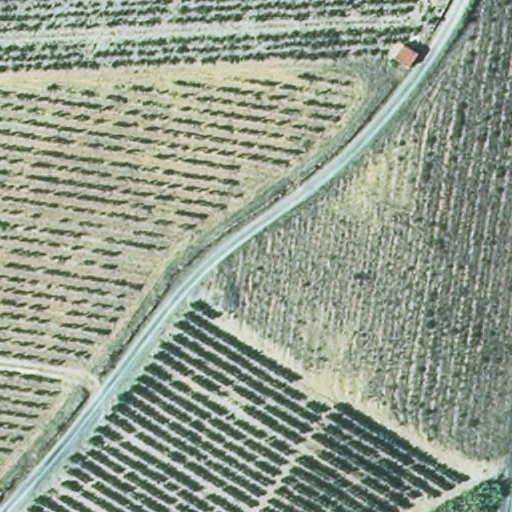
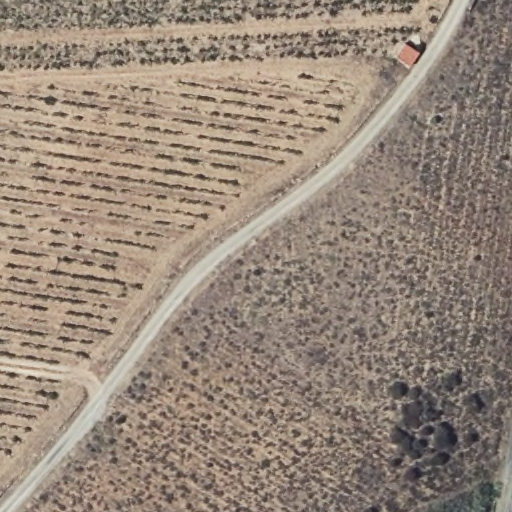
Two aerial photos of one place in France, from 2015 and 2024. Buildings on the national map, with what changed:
unchanged [(403,39),(416,50),(408,66),(394,52),(403,39)]

